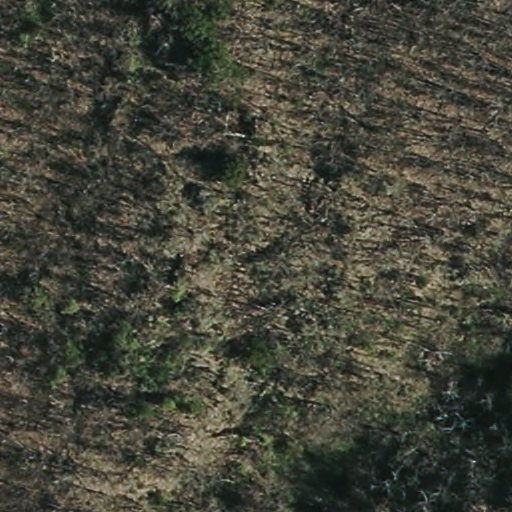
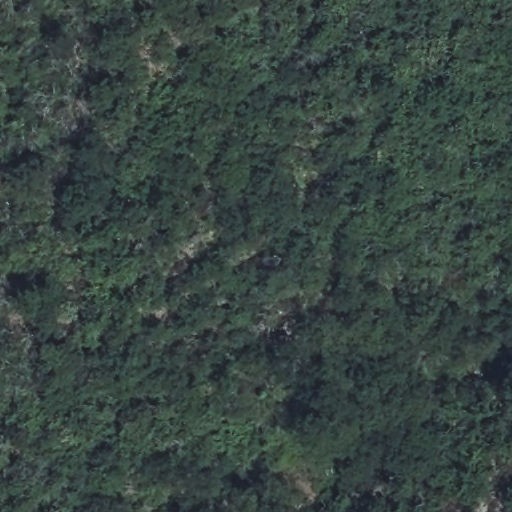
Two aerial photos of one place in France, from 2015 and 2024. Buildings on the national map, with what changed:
unchanged [(260,157),(246,155),(230,151),(236,128),(251,131),(265,133),(260,157)]

